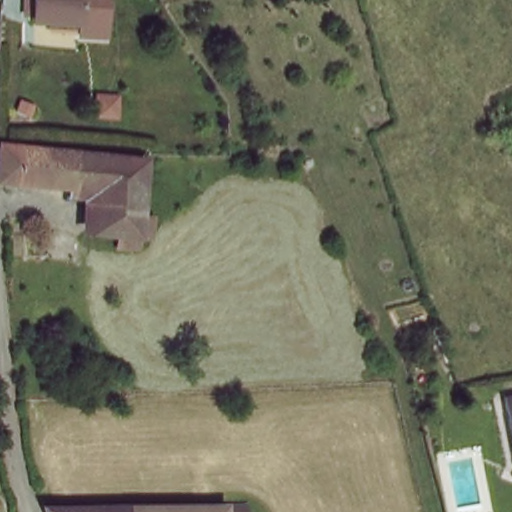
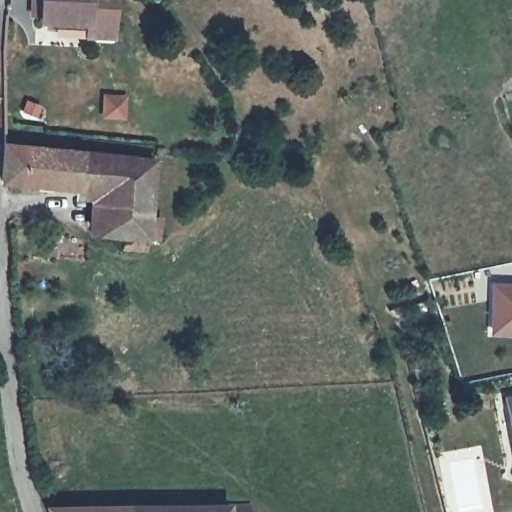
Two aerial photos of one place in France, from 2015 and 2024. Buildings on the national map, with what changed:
unchanged [(110,39),(85,37),(86,26),(38,21),(40,0),(113,0),(110,39)]
unchanged [(146,243),(100,238),(104,195),(2,186),(4,150),(152,166),(146,243)]
new [(490,283),(512,283),(512,337),(489,336),(490,283)]
unchanged [(507,400),(512,399),(512,431),(507,400)]

